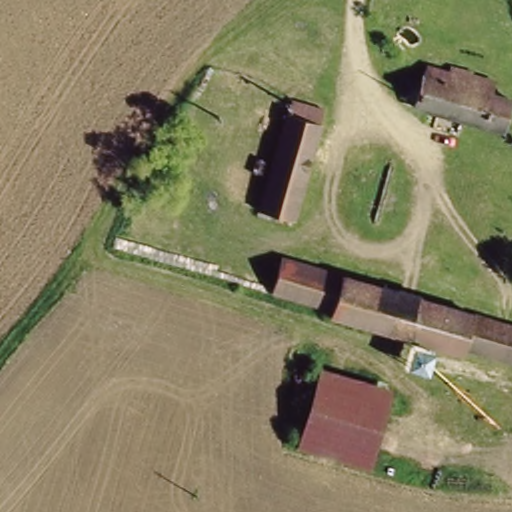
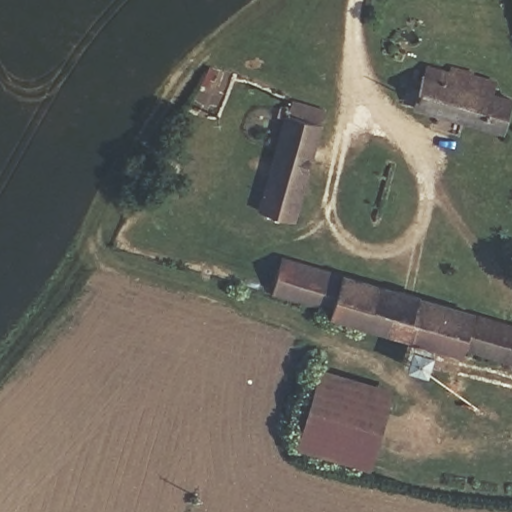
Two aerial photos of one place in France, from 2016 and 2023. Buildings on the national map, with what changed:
unchanged [(495,72),(493,91),(512,95),(512,100),(500,127),(410,110),(425,54),(495,72)]
unchanged [(246,204),(249,192),(255,165),(273,170),(286,117),(291,100),(321,107),(293,215),(246,204)]
unchanged [(512,319),(512,351),(465,339),(462,349),(349,320),(351,310),(275,290),(284,254),(512,319)]
unchanged [(321,373),(391,393),(371,460),(302,440),(321,373)]

